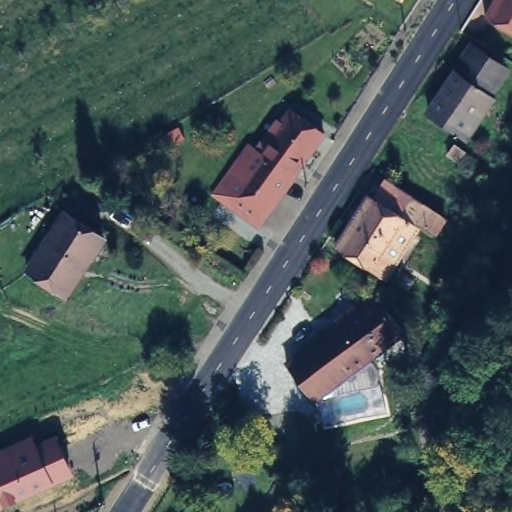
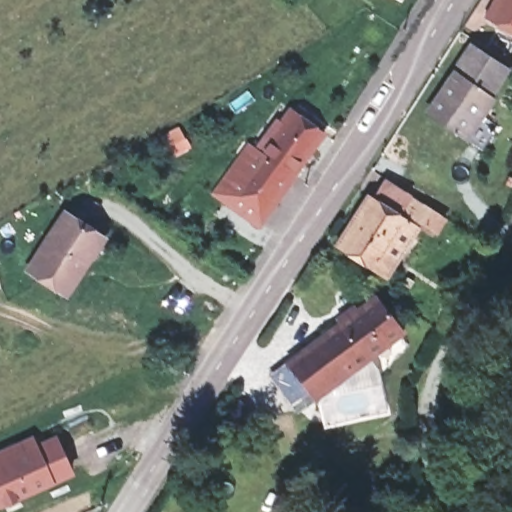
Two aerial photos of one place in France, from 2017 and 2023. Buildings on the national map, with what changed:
unchanged [(502,0),(512,0),(512,32),(492,20),(502,0)]
unchanged [(467,129),(460,124),(429,102),(473,38),(503,60),(487,84),(494,89),(467,129)]
unchanged [(289,100),(322,122),(293,167),(298,170),(263,221),(227,197),(260,144),(289,100)]
unchanged [(227,197),(211,189),(247,136),(260,144),(227,197)]
unchanged [(373,264),(335,239),(367,189),(372,192),(385,173),(445,212),(435,226),(418,215),(382,269),(373,264)]
unchanged [(53,202),(94,223),(62,285),(20,263),(53,202)]
unchanged [(287,357),(375,290),(400,326),(312,392),(287,357)]
unchanged [(0,508),(0,451),(35,434),(38,441),(58,433),(75,474),(54,484),(1,508),(0,508)]

